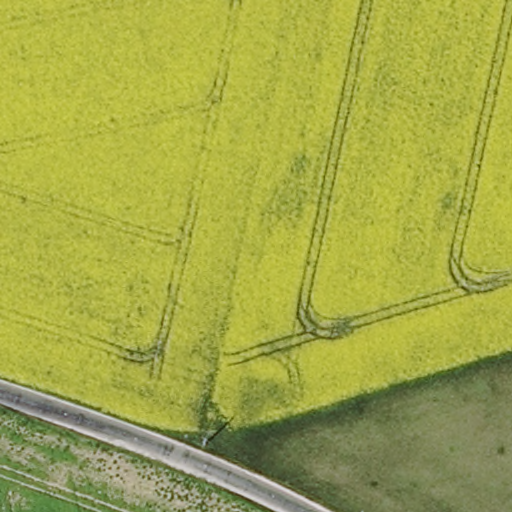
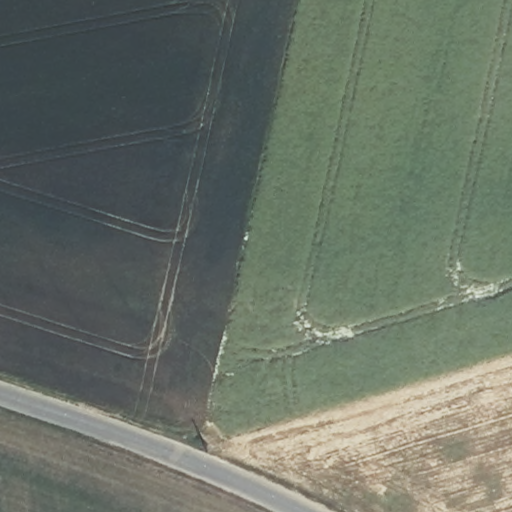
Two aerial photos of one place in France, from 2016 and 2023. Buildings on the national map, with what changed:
[]

